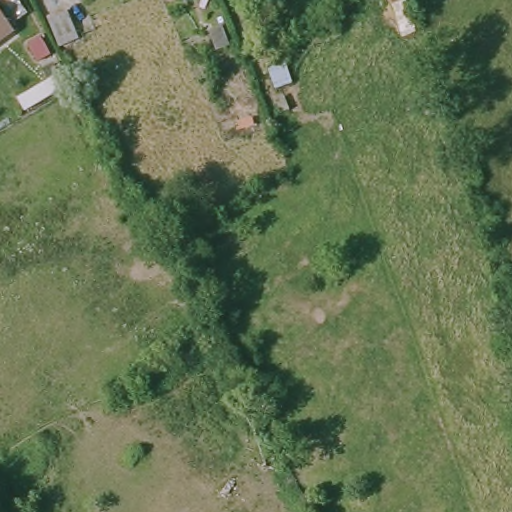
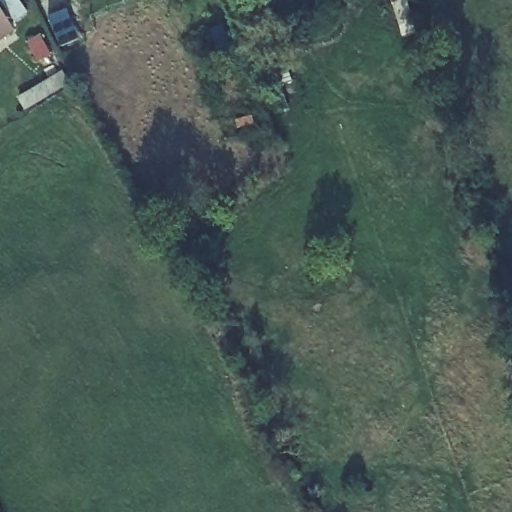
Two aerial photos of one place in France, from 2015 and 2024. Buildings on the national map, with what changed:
unchanged [(2,12),(10,23),(5,27),(9,32),(0,39),(0,14),(2,12)]
unchanged [(52,47),(42,23),(63,14),(74,38),(52,47)]
unchanged [(287,88),(270,93),(263,68),(279,63),(287,88)]

